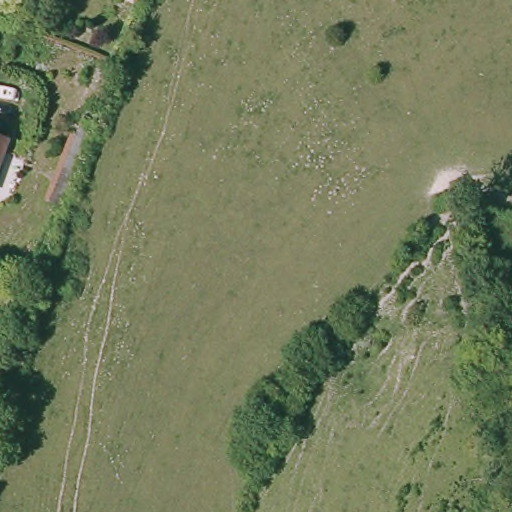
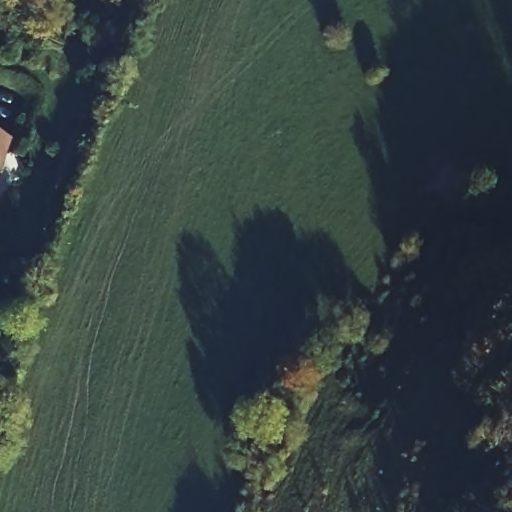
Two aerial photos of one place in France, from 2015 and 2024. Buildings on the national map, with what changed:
unchanged [(73,150),(75,151),(82,131),(102,137),(95,157),(72,217),(52,210),(73,150)]
unchanged [(7,144),(0,161),(0,141),(7,144)]

